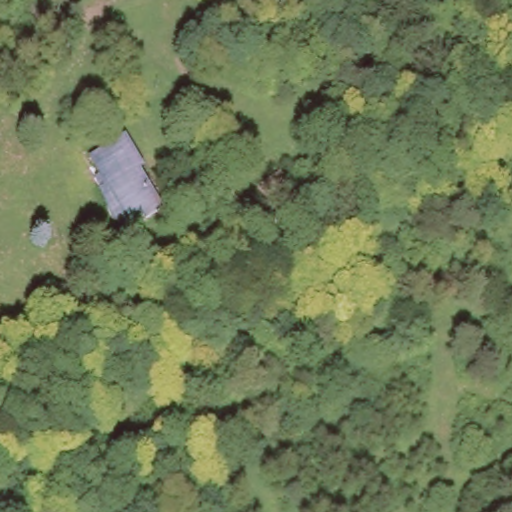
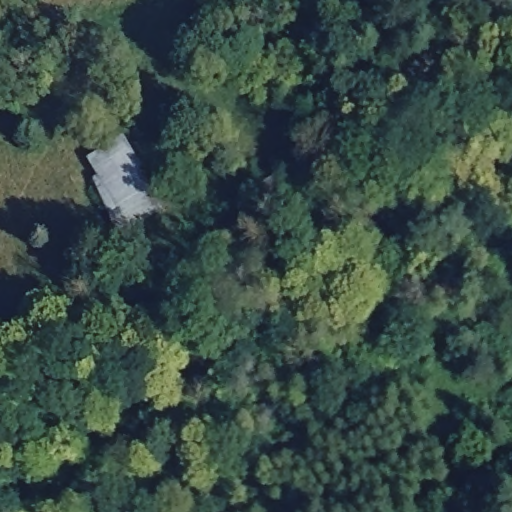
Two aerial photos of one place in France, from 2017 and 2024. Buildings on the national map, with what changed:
unchanged [(88,163),(119,142),(138,171),(133,175),(156,208),(132,227),(88,163)]
unchanged [(299,184),(281,197),(267,180),(287,166),(299,184)]

